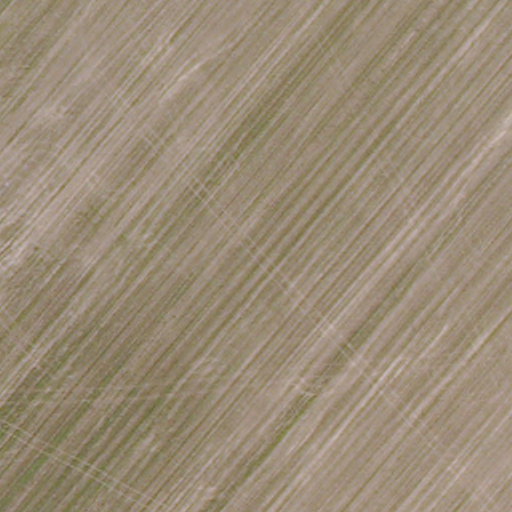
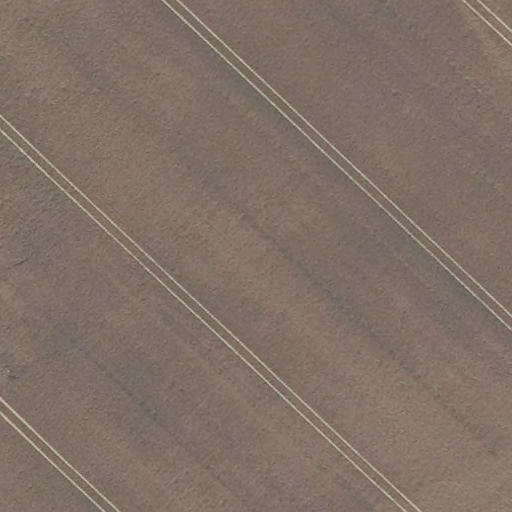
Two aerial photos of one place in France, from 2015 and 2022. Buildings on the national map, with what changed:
[]

